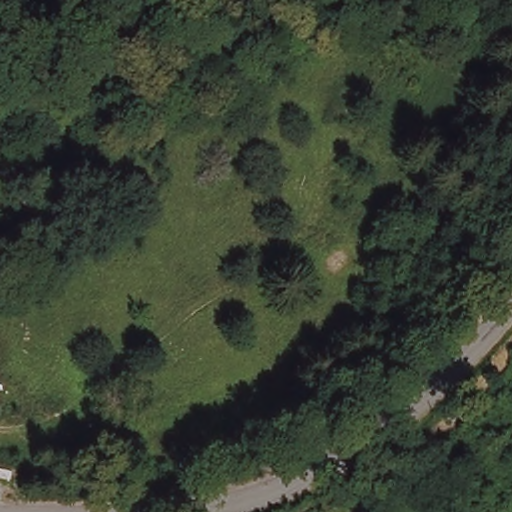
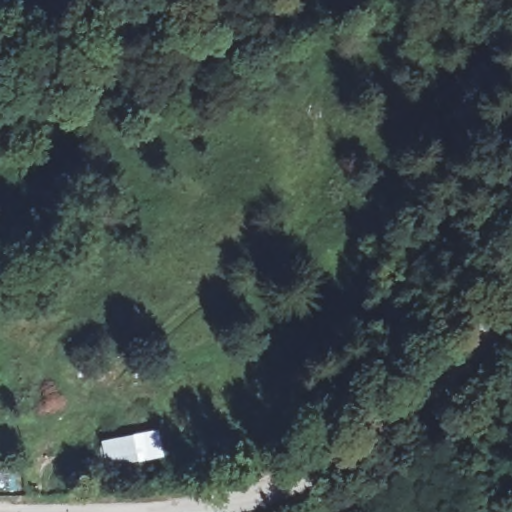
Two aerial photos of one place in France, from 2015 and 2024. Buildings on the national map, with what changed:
new [(160,430),(165,457),(107,467),(102,441),(160,430)]

